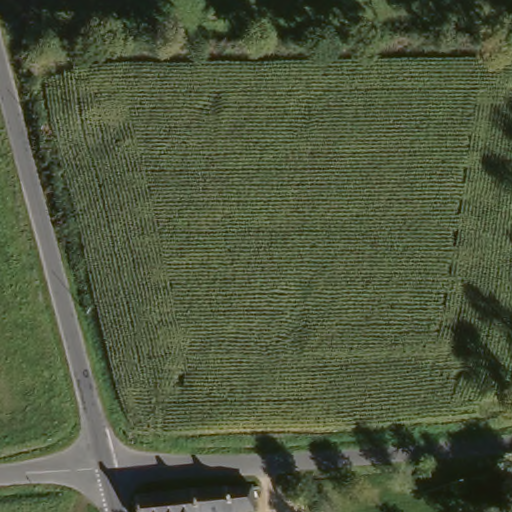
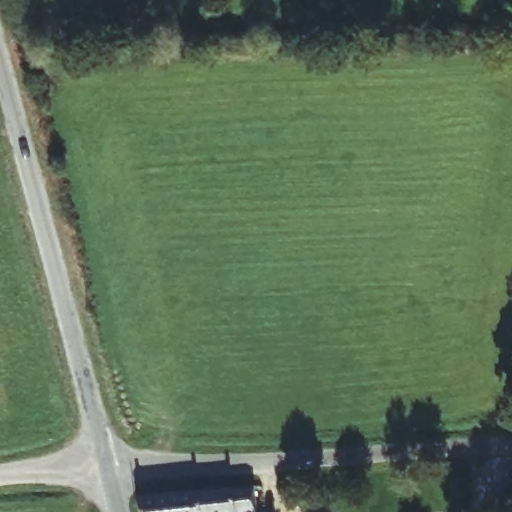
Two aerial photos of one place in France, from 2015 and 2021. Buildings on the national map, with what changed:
unchanged [(133,494),(238,486),(254,485),(254,496),(255,512),(137,512),(133,494)]

